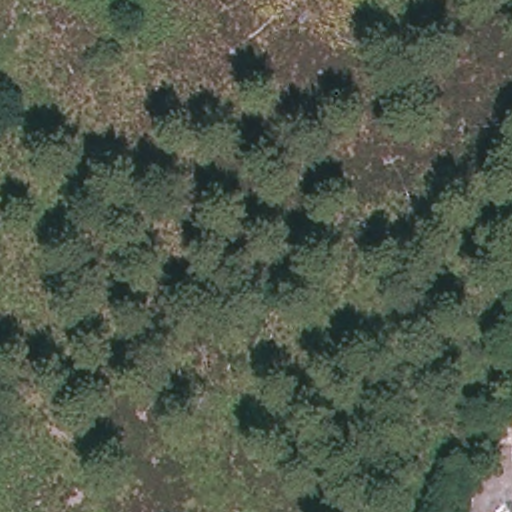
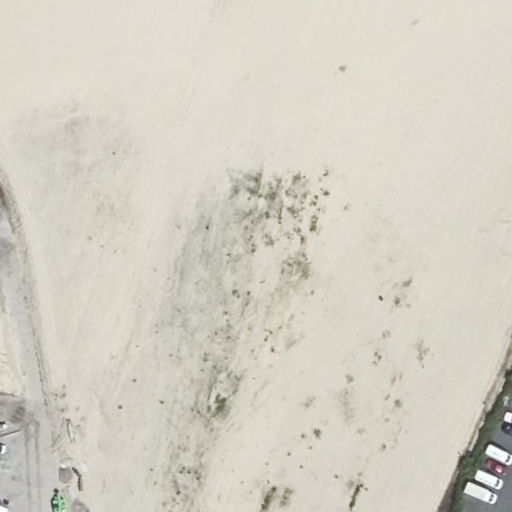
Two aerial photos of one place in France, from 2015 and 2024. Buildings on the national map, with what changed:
[]

